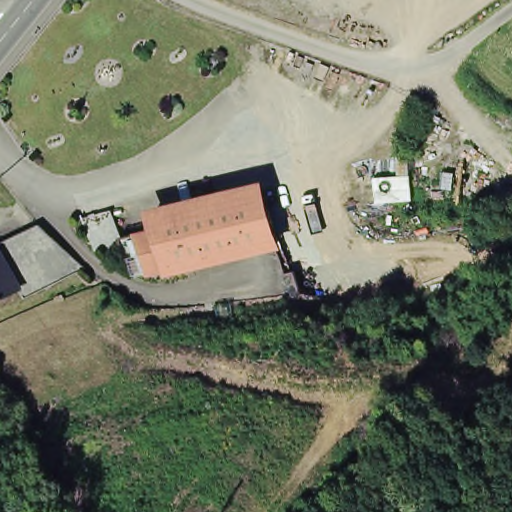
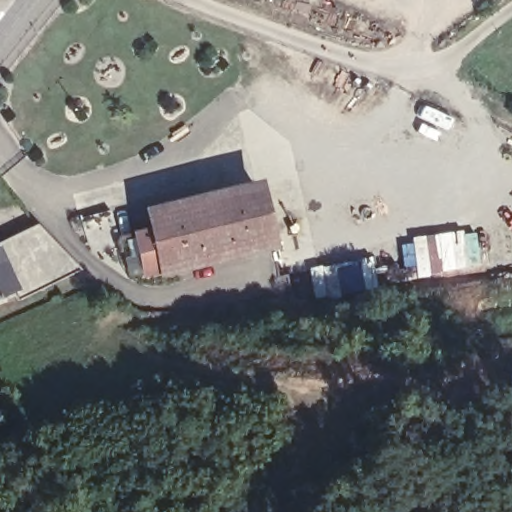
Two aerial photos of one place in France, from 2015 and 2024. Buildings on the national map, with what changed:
unchanged [(151,227),(148,212),(256,186),(269,240),(161,266),(151,227)]
unchanged [(114,236),(116,241),(89,248),(80,211),(109,204),(118,235),(114,236)]
unchanged [(13,298),(8,287),(0,272),(0,236),(25,225),(28,223),(44,240),(73,271),(13,298)]
unchanged [(116,241),(114,236),(118,235),(151,227),(161,266),(125,274),(116,241)]
unchanged [(0,272),(8,287),(0,291),(0,272)]
unchanged [(271,296),(243,302),(240,290),(269,284),(271,296)]
unchanged [(65,301),(58,305),(54,297),(62,294),(65,301)]

